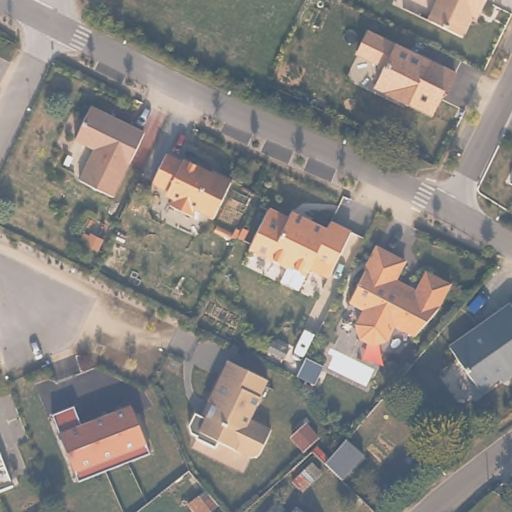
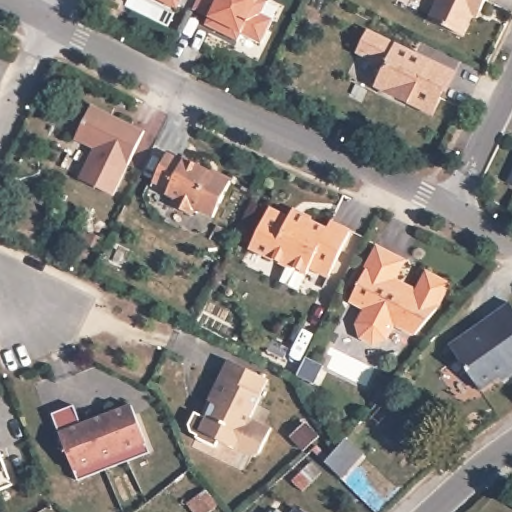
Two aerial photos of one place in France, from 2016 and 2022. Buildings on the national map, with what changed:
unchanged [(178,10),(156,0),(181,0),(180,2),(178,10)]
new [(271,0),(265,12),(276,17),(264,41),(245,31),(241,39),(209,23),(212,15),(197,8),(201,0),(271,0)]
unchanged [(432,20),(441,1),(438,0),(484,0),(465,38),(432,20)]
unchanged [(458,72),(434,119),(372,89),(383,67),(355,55),(368,27),(458,72)]
unchanged [(81,135),(97,102),(116,111),(114,115),(132,124),(133,120),(149,127),(118,191),(85,175),(100,144),(81,135)]
unchanged [(172,150),(187,157),(189,155),(235,177),(217,213),(200,204),(196,211),(174,200),(178,194),(175,192),(173,185),(157,177),(172,150)]
unchanged [(511,181),(512,180),(512,181),(511,181)]
unchanged [(291,216),(295,210),(329,227),(332,221),(351,230),(327,280),(311,273),(300,292),(279,284),(287,266),(249,250),(270,209),(291,216)]
unchanged [(402,251),(392,270),(413,282),(424,262),(446,275),(435,296),(436,296),(411,325),(391,314),(383,329),(370,333),(358,326),(354,313),(362,298),(348,290),(364,259),(364,258),(375,237),(402,251)]
unchanged [(510,367),(508,364),(484,380),(456,338),(512,300),(512,366),(510,367)]
unchanged [(316,352),(322,355),(313,372),(300,366),(296,364),(304,346),(316,352)]
unchanged [(270,380),(253,420),(270,427),(260,453),(252,458),(218,442),(215,447),(190,434),(187,430),(194,412),(206,416),(212,403),(209,400),(227,361),(270,380)]
unchanged [(112,465),(80,478),(78,473),(76,468),(50,402),(72,393),(80,413),(129,393),(144,430),(148,440),(151,450),(112,465)]
unchanged [(366,451),(345,474),(328,459),(347,435),(366,451)]
unchanged [(327,464),(320,473),(310,464),(316,455),(327,464)]
unchanged [(0,488),(0,459),(10,483),(0,488)]
unchanged [(299,512),(292,512),(295,508),(299,512)]

